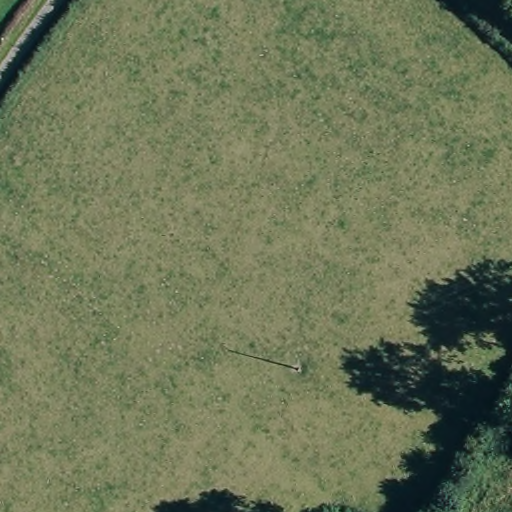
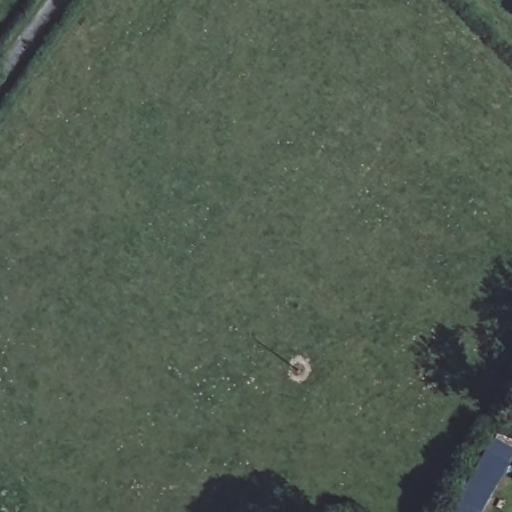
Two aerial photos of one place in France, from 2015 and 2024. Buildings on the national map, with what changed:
new [(512,450),(512,461),(482,512),(452,512),(495,440),(512,450)]

